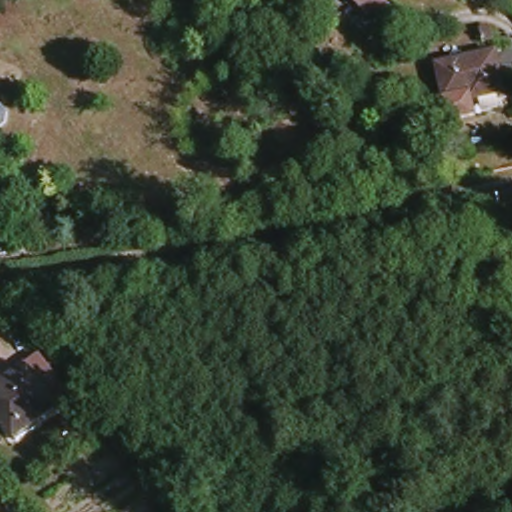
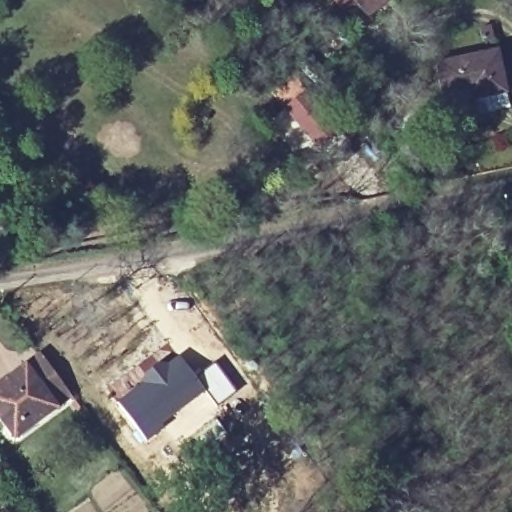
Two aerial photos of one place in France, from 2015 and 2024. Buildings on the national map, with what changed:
unchanged [(339,0),(374,0),(379,5),(373,12),(363,22),(349,10),(339,0)]
unchanged [(474,94),(477,108),(449,112),(446,90),(442,59),(502,50),(507,89),(474,94)]
unchanged [(13,106),(20,117),(16,130),(3,131),(0,129),(0,107),(1,105),(13,106)]
new [(172,356),(177,353),(195,375),(214,361),(237,390),(217,405),(205,390),(146,440),(114,398),(168,353),(172,356)]
unchanged [(0,389),(40,360),(48,355),(75,393),(69,398),(16,436),(0,414),(0,389)]

